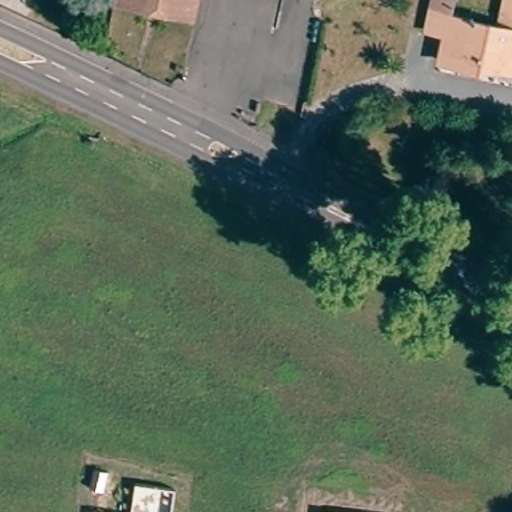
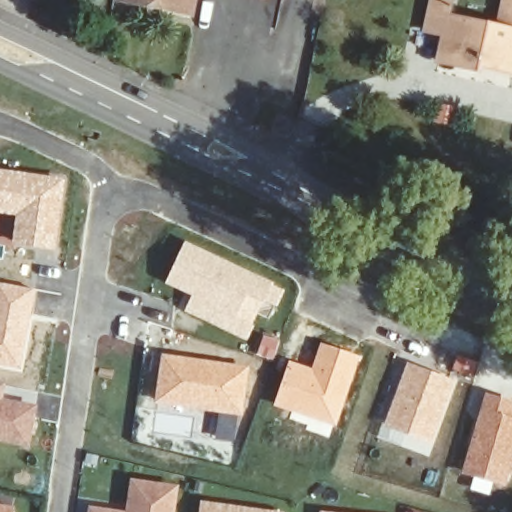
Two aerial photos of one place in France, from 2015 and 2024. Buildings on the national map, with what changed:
unchanged [(119,0),(196,0),(193,15),(119,0)]
unchanged [(463,65),(445,60),(446,55),(451,32),(432,28),(439,0),(460,0),(456,15),(501,25),(507,0),(512,0),(512,70),(501,67),(484,64),(483,69),(463,65)]
new [(16,215),(0,212),(0,169),(64,178),(55,250),(12,245),(16,215)]
new [(237,317),(254,325),(247,339),(188,311),(195,297),(165,284),(185,241),(274,282),(263,305),(247,297),(237,317)]
new [(10,303),(20,287),(31,290),(34,295),(20,369),(0,365),(0,293),(10,303)]
new [(320,343),(360,356),(336,427),(272,405),(289,360),(312,368),(320,343)]
new [(156,401),(162,355),(207,361),(207,365),(213,365),(213,361),(249,366),(242,415),(236,414),(156,401)]
new [(408,361),(455,380),(431,444),(384,426),(408,361)]
new [(0,441),(0,385),(5,387),(3,397),(37,403),(29,446),(0,441)]
new [(512,400),(512,466),(506,486),(461,473),(485,392),(512,400)]
new [(90,505),(126,511),(132,479),(180,485),(176,512),(89,512),(90,505)]
new [(202,502),(277,512),(201,512),(202,502)]
new [(14,507),(14,512),(0,512),(0,504),(14,507)]
unchanged [(350,512),(321,512),(321,509),(350,512)]

